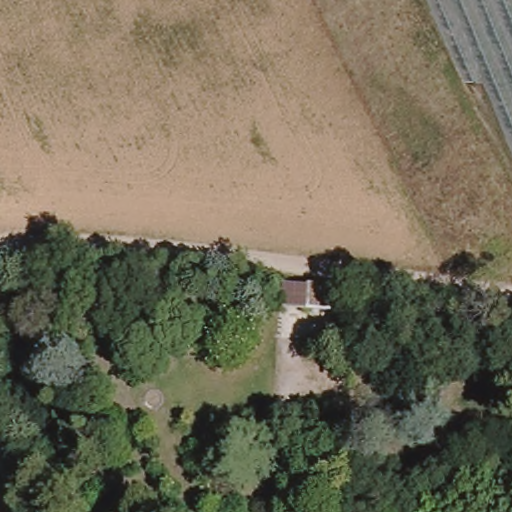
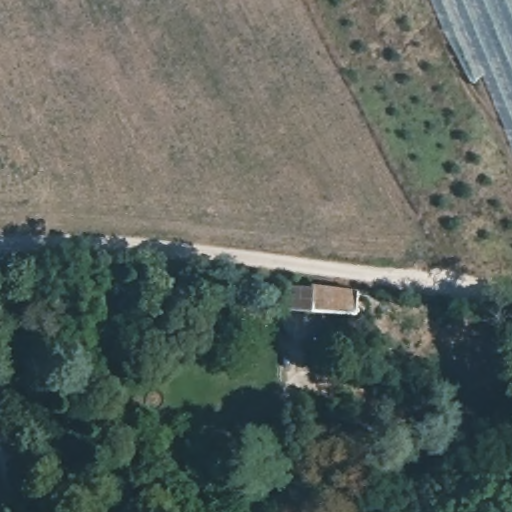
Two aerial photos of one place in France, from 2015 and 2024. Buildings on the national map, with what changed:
unchanged [(301,279),(370,289),(368,311),(297,307),(298,279),(301,279)]

